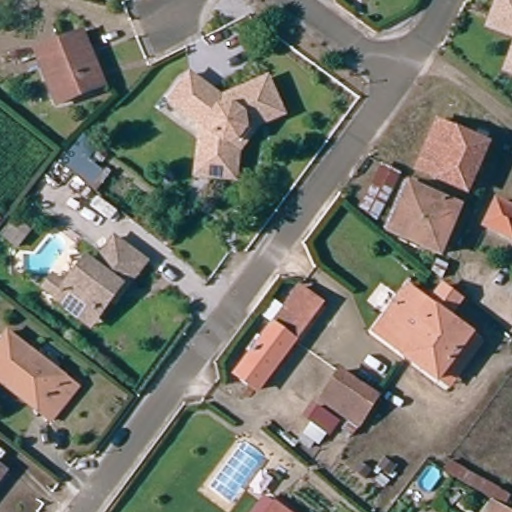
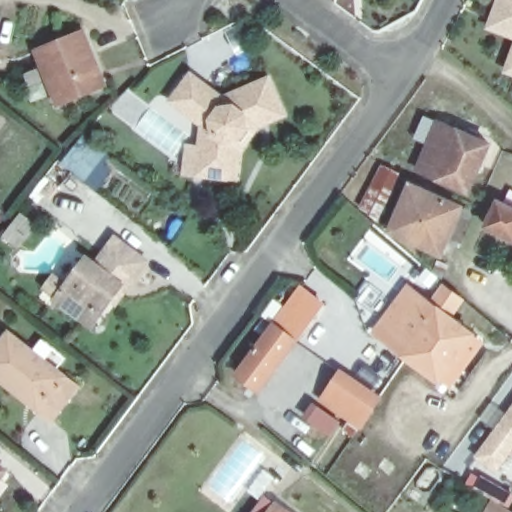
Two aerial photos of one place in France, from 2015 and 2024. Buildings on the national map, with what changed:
unchanged [(489,27),(493,17),(494,13),(499,0),(512,0),(512,36),(489,27)]
unchanged [(47,83),(31,50),(76,30),(100,81),(68,95),(55,101),(47,83)]
unchanged [(506,70),(512,54),(512,73),(506,70)]
unchanged [(192,158),(195,137),(196,123),(164,100),(184,73),(217,97),(265,80),(277,115),(262,121),(250,127),(231,149),(230,161),(227,178),(209,176),(191,173),(192,158)]
unchanged [(467,192),(417,169),(438,122),(488,144),(467,192)]
unchanged [(95,161),(105,168),(92,187),(59,161),(81,130),(105,148),(95,161)]
unchanged [(394,170),(371,216),(356,204),(379,162),(394,170)]
unchanged [(455,202),(435,248),(385,226),(405,180),(455,202)]
unchanged [(487,228),(498,203),(512,210),(512,240),(487,228)]
unchanged [(15,248),(1,237),(18,214),(32,225),(15,248)]
unchanged [(67,308),(55,299),(57,296),(45,287),(53,276),(66,285),(86,257),(95,263),(113,239),(145,263),(125,289),(114,304),(109,300),(99,314),(90,326),(67,308)]
unchanged [(294,283),(316,299),(292,332),(289,335),(268,317),(294,283)]
unchanged [(434,379),(370,334),(402,289),(425,305),(437,288),(455,301),(443,317),(466,333),(474,339),(441,385),(434,379)]
unchanged [(223,379),(231,368),(268,317),(289,335),(253,385),(245,379),(238,389),(223,379)]
unchanged [(0,339),(6,331),(31,351),(76,385),(50,420),(34,408),(13,391),(0,382),(0,339)]
unchanged [(386,396),(366,423),(329,396),(350,368),(386,396)]
unchanged [(322,404),(343,419),(335,431),(314,415),(322,404)]
new [(512,409),(512,444),(495,468),(478,456),(512,409)]
unchanged [(0,478),(0,469),(5,472),(0,478)]
unchanged [(264,497),(275,505),(284,512),(253,512),(264,497)]
unchanged [(494,498),(512,509),(512,512),(487,512),(494,498)]

